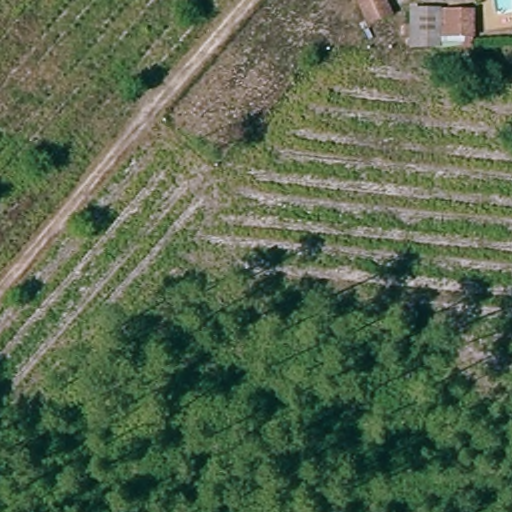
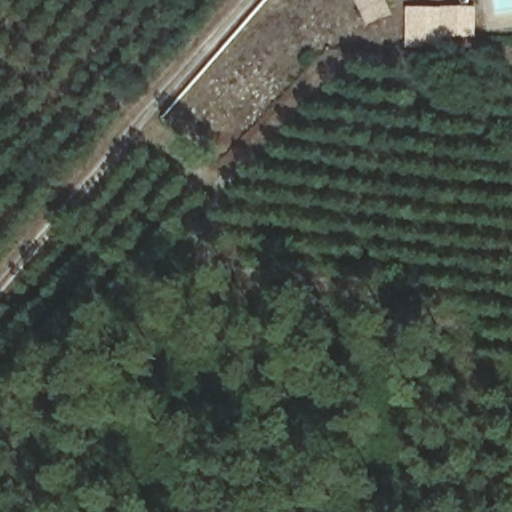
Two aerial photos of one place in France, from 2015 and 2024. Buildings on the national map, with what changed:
unchanged [(391,14),(365,24),(354,0),(386,0),(391,14)]
unchanged [(407,5),(474,9),(472,35),(438,35),(438,48),(407,48),(407,5)]

